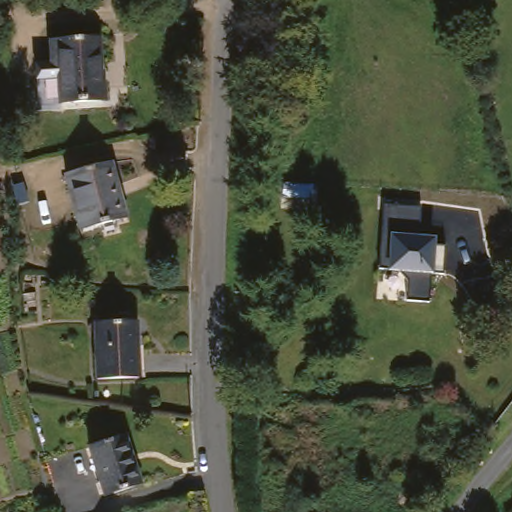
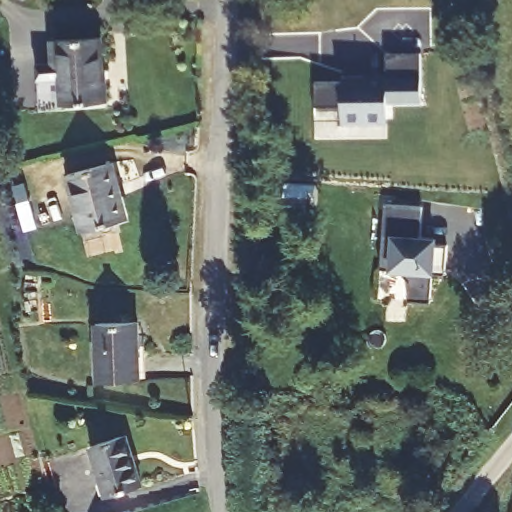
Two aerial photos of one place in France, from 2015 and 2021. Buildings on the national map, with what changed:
unchanged [(101,39),(101,103),(58,103),(57,63),(53,63),(52,39),(101,39)]
new [(366,80),(366,75),(387,74),(386,52),(421,50),(423,99),(389,101),(390,118),(369,119),(369,121),(345,123),(345,106),(317,107),(316,83),(366,80)]
unchanged [(109,163),(116,186),(112,187),(121,219),(79,231),(63,176),(109,163)]
unchanged [(419,206),(418,236),(435,237),(435,249),(446,250),(443,277),(432,276),(430,302),(405,300),(407,271),(388,270),(379,267),(383,203),(419,206)]
unchanged [(136,324),(133,380),(91,377),(94,322),(136,324)]
unchanged [(120,438),(136,487),(99,499),(84,450),(120,438)]

